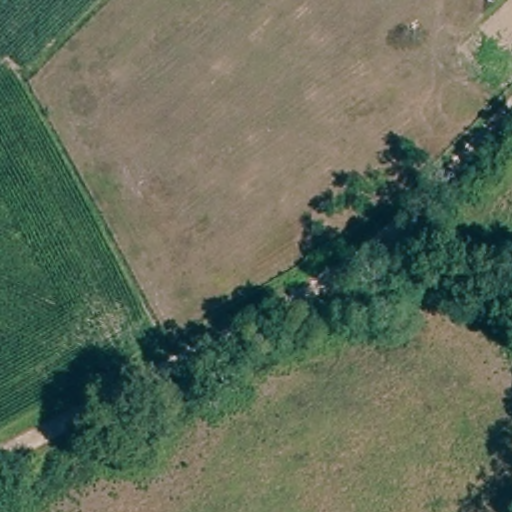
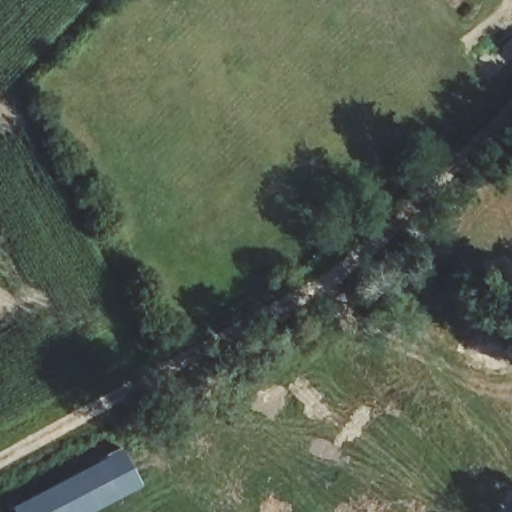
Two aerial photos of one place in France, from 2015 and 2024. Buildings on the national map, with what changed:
new [(122,446),(144,485),(92,512),(13,512),(10,505),(122,446)]

